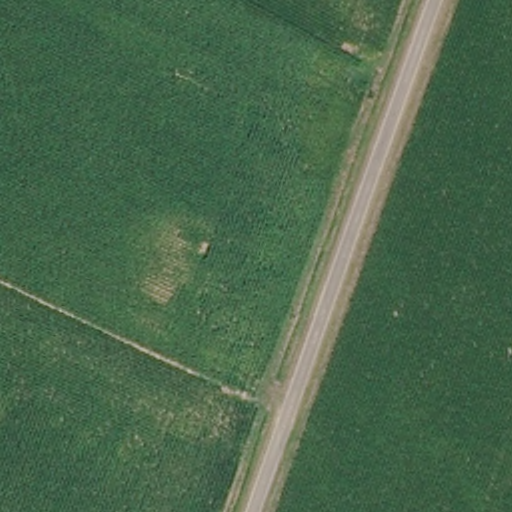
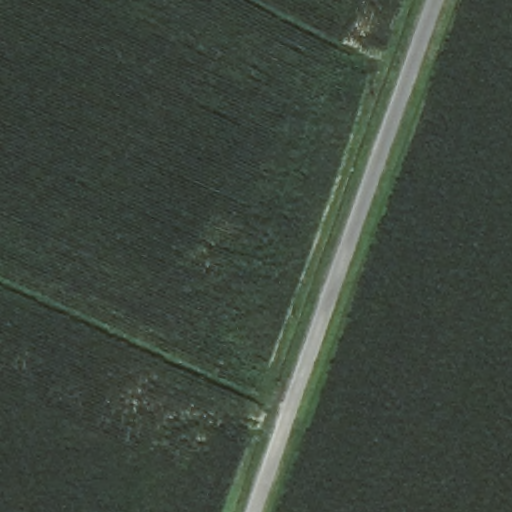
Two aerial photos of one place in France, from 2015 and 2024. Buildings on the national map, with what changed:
[]

